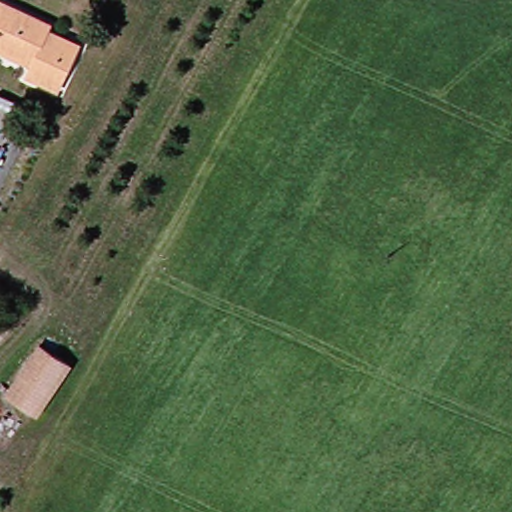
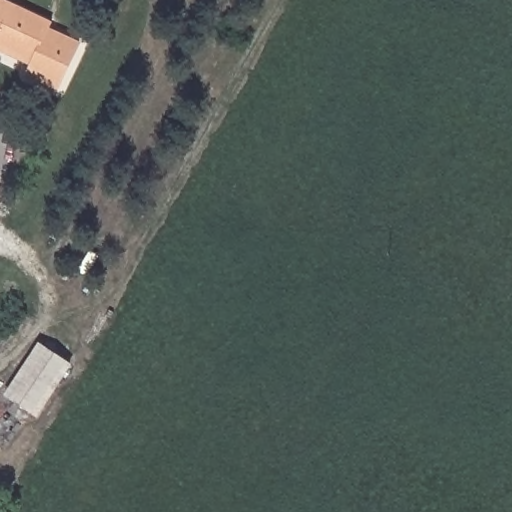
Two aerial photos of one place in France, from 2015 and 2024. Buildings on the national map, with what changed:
unchanged [(70,50),(42,95),(12,75),(20,64),(0,52),(0,0),(2,0),(43,25),(41,30),(70,50)]
unchanged [(61,375),(21,417),(0,396),(0,388),(36,350),(61,375)]

